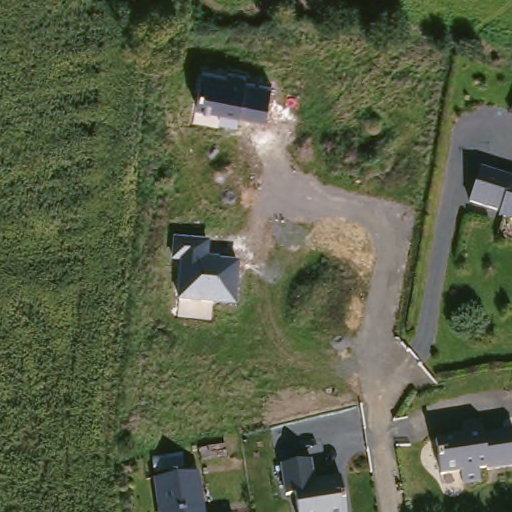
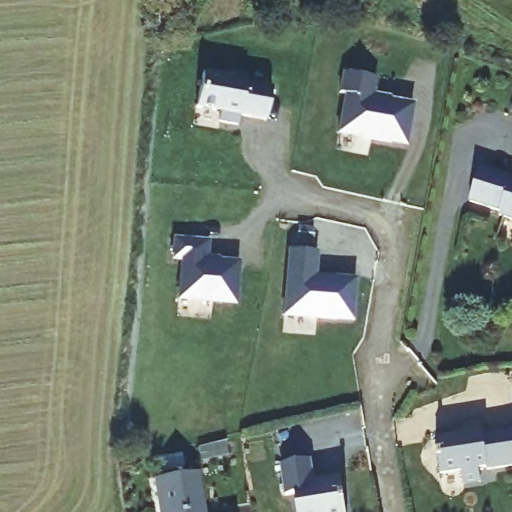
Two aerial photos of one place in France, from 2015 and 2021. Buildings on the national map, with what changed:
new [(359,89),(353,88),(356,67),(388,71),(385,91),(424,99),(418,136),(404,134),(404,137),(352,128),(359,89)]
unchanged [(266,121),(241,115),(239,128),(221,124),(224,112),(197,106),(203,74),(214,76),(215,72),(248,79),(246,83),(273,89),(266,121)]
unchanged [(512,173),(512,214),(506,212),(507,208),(476,198),(486,165),(512,173)]
unchanged [(236,306),(176,301),(180,263),(173,262),(174,237),(211,241),(209,258),(239,262),(236,306)]
new [(298,248),(324,250),(323,275),(363,278),(361,315),(346,315),(346,316),(326,315),(325,333),(294,331),(298,248)]
unchanged [(512,467),(498,469),(498,467),(489,468),(491,480),(474,483),(473,471),(452,474),(446,440),(475,435),(473,423),(491,420),(494,434),(512,431),(512,467)]
unchanged [(353,512),(332,512),(331,511),(327,512),(307,512),(304,483),(294,484),(291,453),(321,450),(324,474),(331,474),(331,470),(349,468),(353,512)]
unchanged [(213,509),(241,506),(242,512),(177,512),(176,500),(169,500),(165,463),(207,458),(213,509)]

